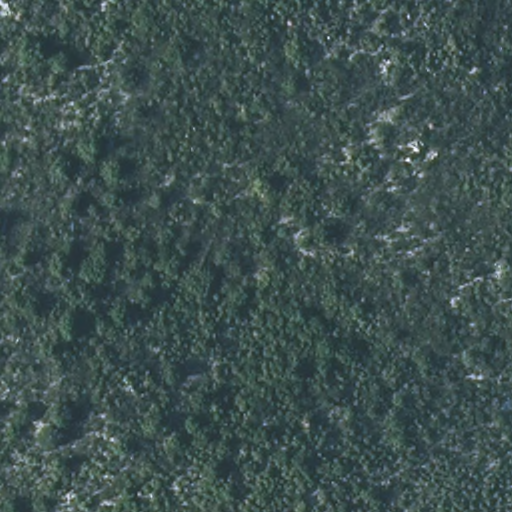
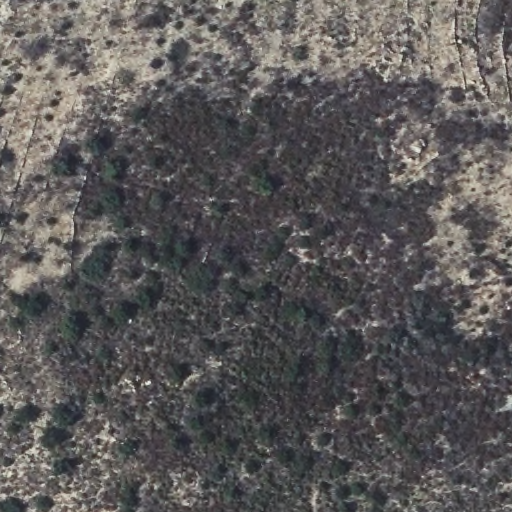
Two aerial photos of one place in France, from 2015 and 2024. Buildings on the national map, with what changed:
[]

